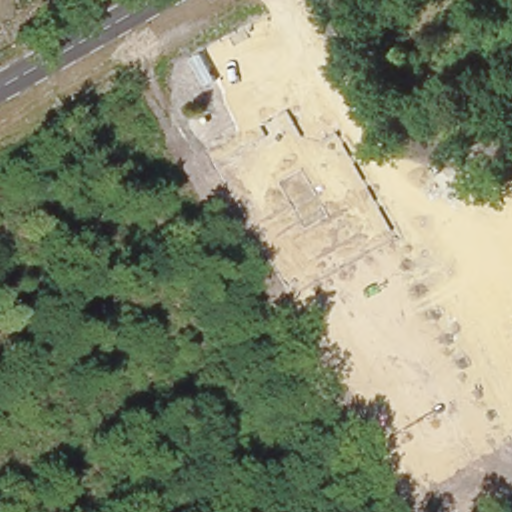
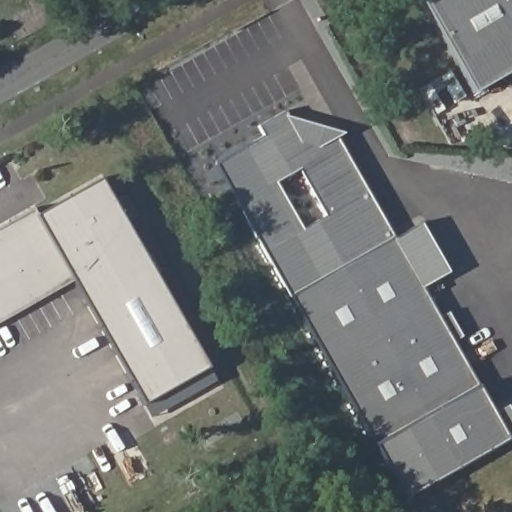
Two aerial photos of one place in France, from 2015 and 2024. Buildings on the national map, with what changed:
new [(473,91),(422,0),(512,0),(512,69),(473,91)]
new [(260,125),(286,111),(287,115),(346,134),(338,138),(395,240),(422,226),(449,274),(423,288),(440,318),(449,312),(463,337),(455,343),(479,387),(495,413),(507,406),(512,414),(512,438),(508,440),(405,500),(376,446),(292,297),(217,164),(267,136),(260,125)]
new [(0,324),(0,229),(34,210),(37,216),(102,179),(209,367),(142,404),(74,282),(0,324)]

